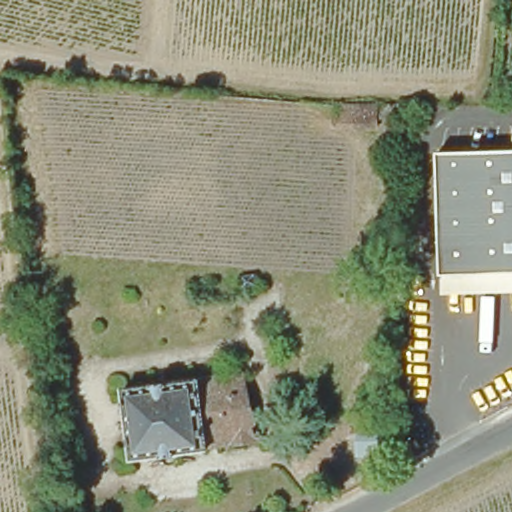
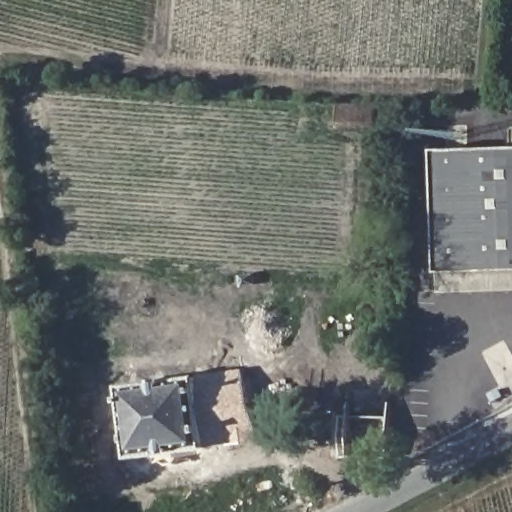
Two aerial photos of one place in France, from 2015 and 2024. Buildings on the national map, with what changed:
unchanged [(511,149),(510,129),(512,129),(512,272),(439,274),(437,200),(435,151),(511,149)]
unchanged [(512,272),(512,292),(440,294),(439,274),(512,272)]
unchanged [(257,280),(259,289),(249,290),(248,282),(257,280)]
unchanged [(246,378),(260,444),(211,450),(211,453),(135,463),(126,393),(246,378)]
unchanged [(363,455),(365,426),(395,427),(394,456),(363,455)]

